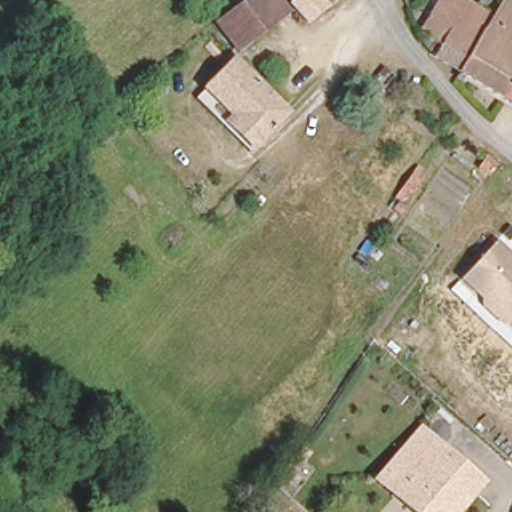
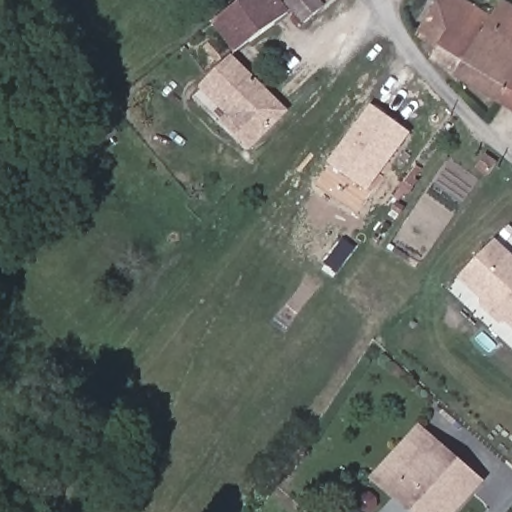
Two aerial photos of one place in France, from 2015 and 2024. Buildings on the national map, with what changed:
unchanged [(257,41),(256,40),(239,54),(214,24),(243,0),(270,0),(285,15),(257,41)]
unchanged [(308,27),(303,23),(297,29),(285,15),(270,0),(337,0),(308,27)]
unchanged [(430,53),(433,44),(418,35),(439,0),(460,0),(490,17),(457,70),(430,53)]
unchanged [(457,70),(490,17),(501,0),(512,7),(512,103),(457,70)]
unchanged [(253,149),(196,87),(230,55),(288,115),(253,149)]
new [(401,133),(408,138),(368,192),(328,163),(371,105),(404,129),(401,133)]
unchanged [(483,307),(482,300),(462,280),(495,244),(512,260),(512,327),(507,322),(499,322),(483,307)]
unchanged [(412,512),(377,478),(422,430),(480,485),(453,512),(412,512)]

